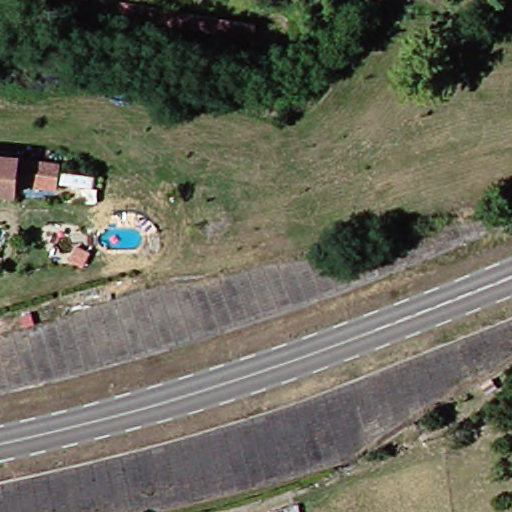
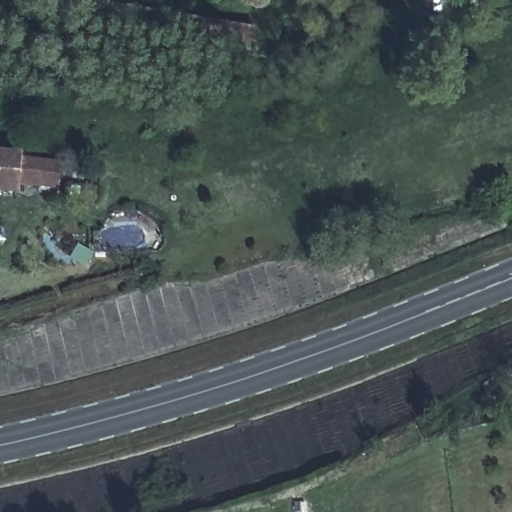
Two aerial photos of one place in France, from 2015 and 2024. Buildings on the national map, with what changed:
unchanged [(103,19),(106,0),(262,26),(260,39),(216,31),(108,16),(105,19),(103,19)]
unchanged [(63,161),(61,185),(17,182),(18,192),(0,189),(0,156),(63,161)]

